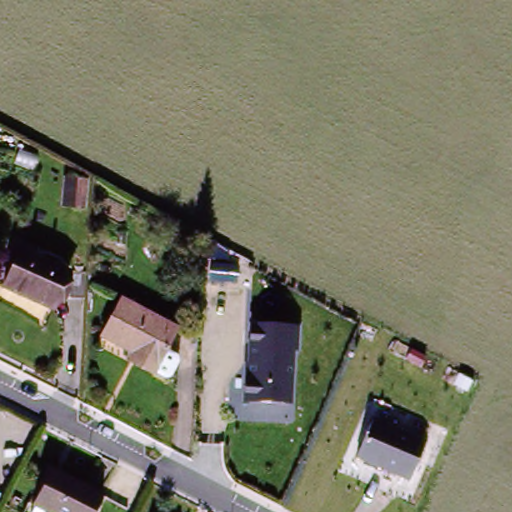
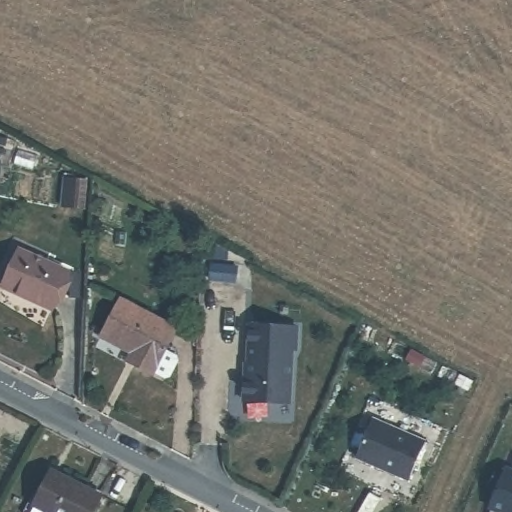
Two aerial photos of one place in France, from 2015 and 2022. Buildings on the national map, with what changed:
unchanged [(1,297),(12,255),(64,271),(52,312),(1,297)]
unchanged [(178,360),(166,381),(152,375),(147,378),(122,364),(127,355),(100,337),(123,296),(175,326),(163,351),(178,360)]
unchanged [(300,328),(299,352),(293,351),(292,406),(241,402),(242,360),(248,360),(250,326),(300,328)]
unchanged [(423,444),(407,481),(355,458),(370,418),(423,444)]
new [(512,470),(512,512),(500,512),(491,508),(508,468),(512,470)]
unchanged [(98,512),(24,512),(28,505),(35,508),(55,473),(104,501),(98,512)]

